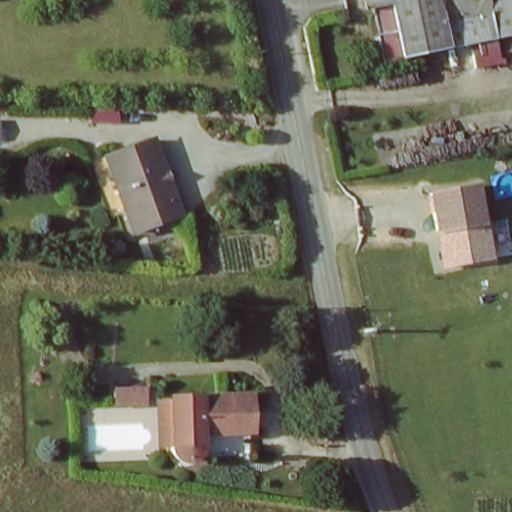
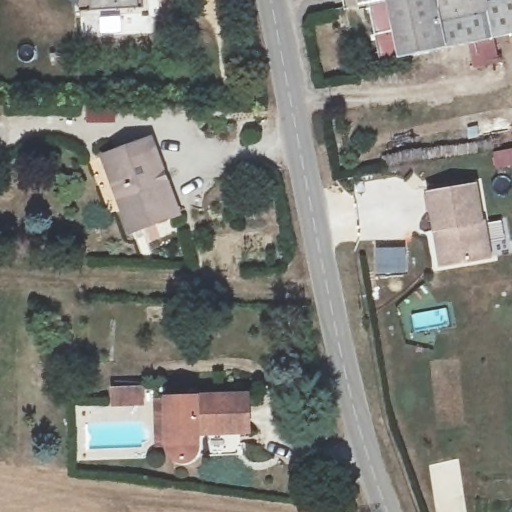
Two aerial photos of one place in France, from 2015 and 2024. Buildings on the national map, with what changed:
new [(87,0),(134,0),(135,7),(97,9),(87,9),(87,0)]
new [(143,7),(135,7),(134,0),(142,0),(143,7)]
unchanged [(448,55),(385,66),(374,9),(364,10),(363,0),(436,0),(448,55)]
unchanged [(494,47),(448,55),(436,0),(487,0),(494,47)]
unchanged [(179,211),(132,230),(115,188),(103,156),(113,152),(150,138),(179,211)]
unchanged [(437,237),(430,199),(452,195),(477,191),(484,228),(486,227),(492,263),(462,268),(452,270),(444,272),(437,237)]
unchanged [(143,408),(116,410),(115,393),(142,391),(143,408)]
unchanged [(252,401),(256,437),(203,439),(205,448),(205,453),(202,459),(197,463),(190,466),(185,464),(181,460),(177,455),(176,447),(164,447),(162,406),(174,404),(174,401),(252,401)]

